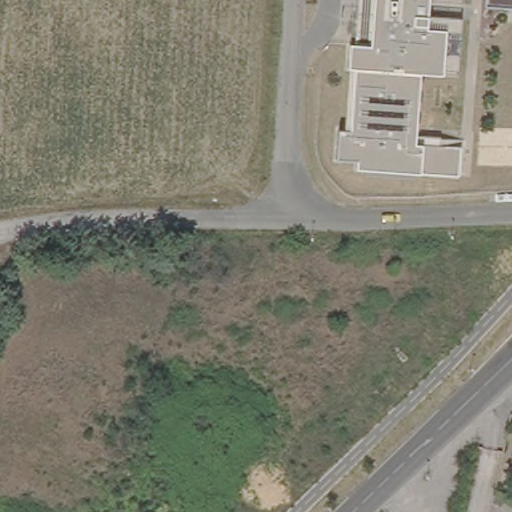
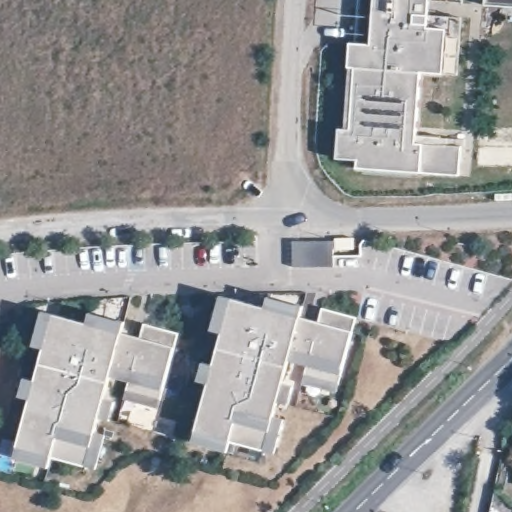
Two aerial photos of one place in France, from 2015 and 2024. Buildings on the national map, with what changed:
unchanged [(334,130),(342,130),(347,44),(368,43),(370,0),(462,0),(457,79),(441,77),(415,76),(412,139),(460,147),(459,175),(357,172),(355,162),(332,161),(334,130)]
unchanged [(486,5),(486,0),(512,0),(512,6),(486,5)]
new [(293,241),(335,241),(335,267),(293,267),(293,241)]
new [(289,404),(278,401),(265,451),(196,432),(232,298),(266,307),(268,297),(303,306),(301,317),(319,322),(322,308),(357,317),(339,384),(305,375),(307,365),(289,360),(283,383),(293,386),(289,404)]
new [(110,420),(100,417),(86,466),(17,447),(53,314),(87,323),(90,313),(125,322),(123,333),(141,338),(144,324),(179,333),(161,400),(126,391),(129,381),(111,376),(105,399),(115,402),(110,420)]

